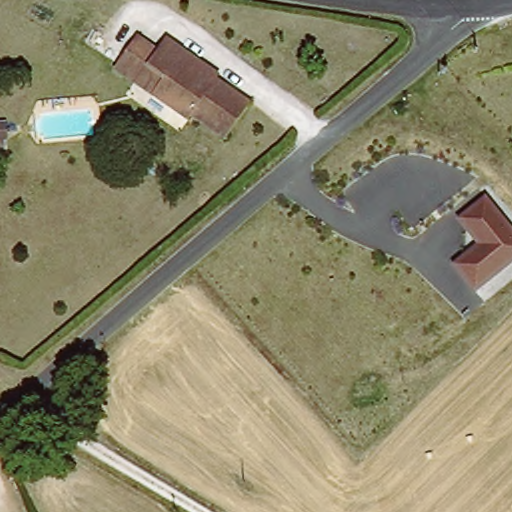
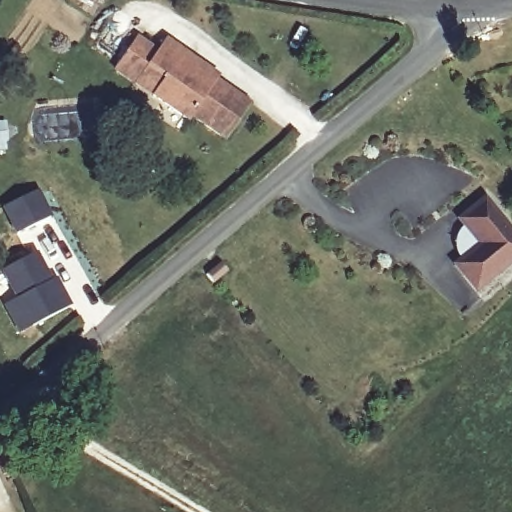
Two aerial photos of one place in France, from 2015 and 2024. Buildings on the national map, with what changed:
unchanged [(218,145),(189,121),(185,126),(151,99),(150,100),(133,87),(135,86),(117,71),(140,40),(155,51),(164,40),(192,62),(214,78),(210,83),(245,109),(218,145)]
new [(50,217),(13,235),(0,208),(37,191),(50,217)]
unchanged [(475,291),(455,264),(480,244),(461,218),(487,197),(512,228),(512,263),(475,291)]
new [(55,278),(70,306),(17,335),(2,307),(12,300),(0,276),(0,271),(37,253),(50,280),(55,278)]
unchanged [(0,476),(0,440),(13,474),(2,480),(0,476)]

